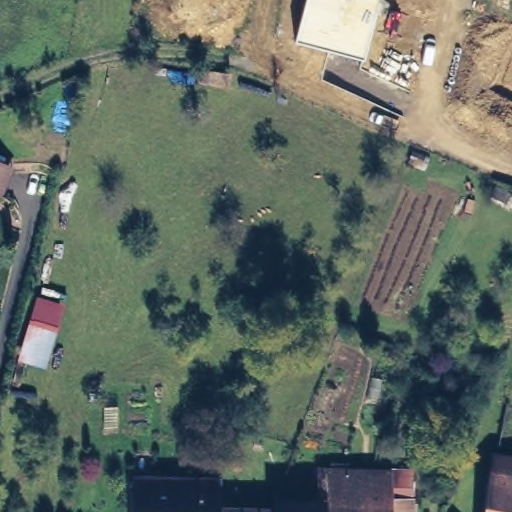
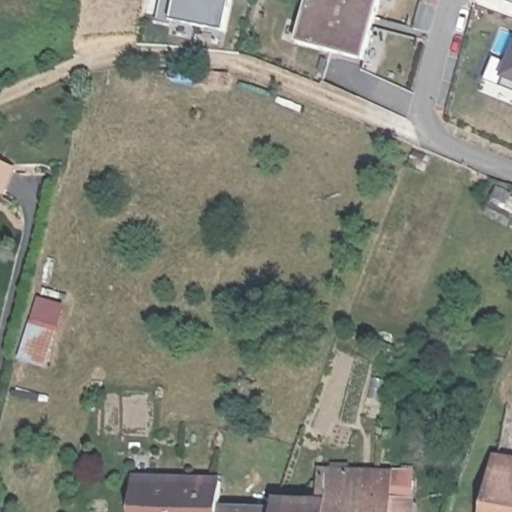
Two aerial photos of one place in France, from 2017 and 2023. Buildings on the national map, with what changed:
new [(169,25),(155,22),(160,0),(230,0),(224,33),(170,21),(169,25)]
unchanged [(295,41),(305,0),(379,0),(362,59),(295,41)]
new [(512,44),(512,92),(495,85),(512,44)]
unchanged [(11,175),(15,177),(7,199),(2,197),(0,201),(0,170),(11,175)]
unchanged [(47,370),(16,362),(34,298),(65,307),(47,370)]
unchanged [(220,480),(220,504),(267,506),(268,498),(316,497),(319,466),(417,465),(419,512),(131,512),(131,471),(220,480)]
unchanged [(512,479),(512,512),(481,512),(488,476),(512,479)]

